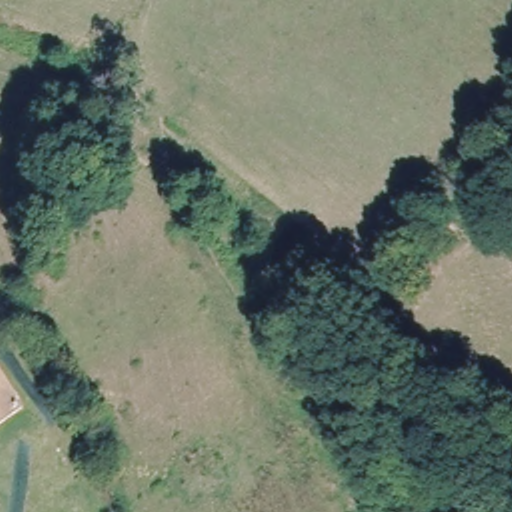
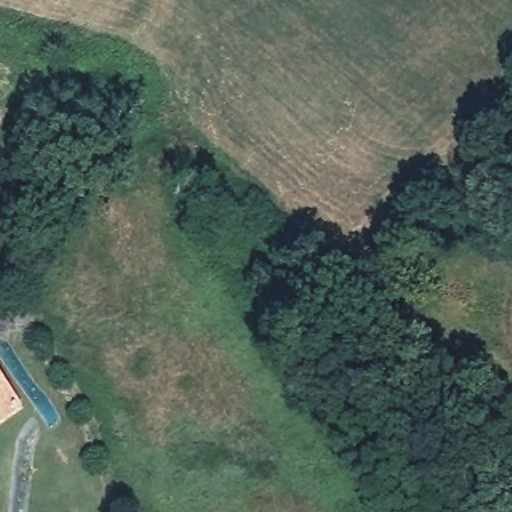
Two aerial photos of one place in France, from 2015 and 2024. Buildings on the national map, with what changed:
unchanged [(0,426),(0,381),(21,411),(0,426)]

